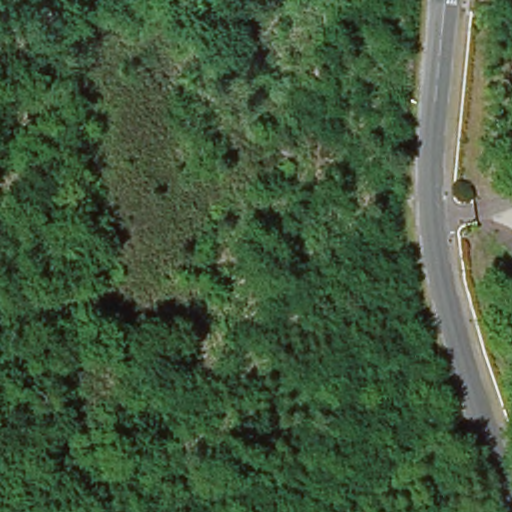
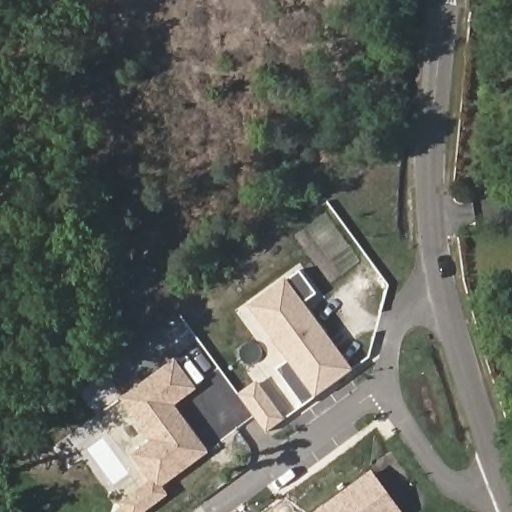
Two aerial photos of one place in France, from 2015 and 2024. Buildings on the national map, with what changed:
new [(354,367),(315,393),(250,302),(287,277),(354,367)]
new [(175,402),(209,450),(161,485),(169,495),(143,512),(130,512),(121,501),(150,479),(132,452),(151,438),(122,397),(174,358),(196,388),(175,402)]
new [(257,380),(284,416),(263,430),(240,392),(257,380)]
new [(373,469),(402,512),(314,512),(373,469)]

